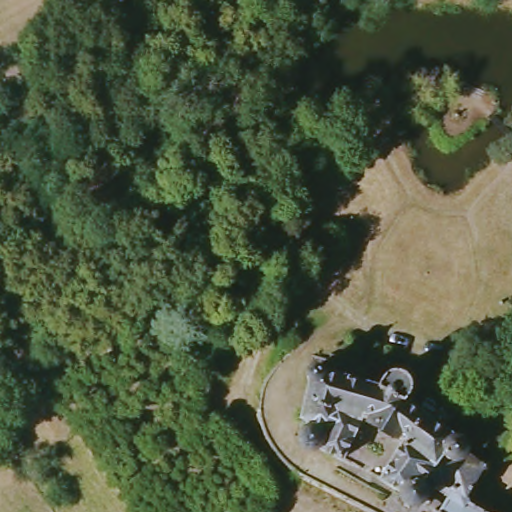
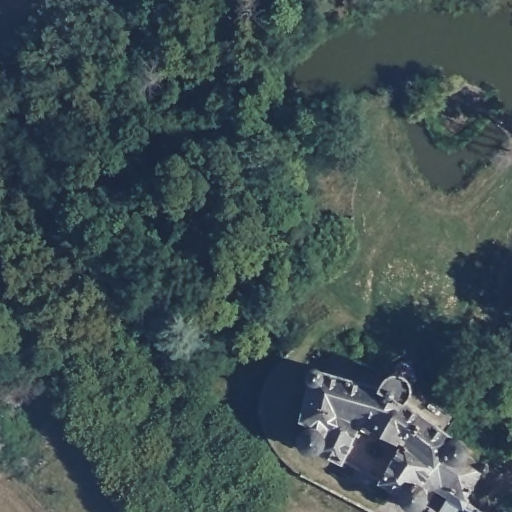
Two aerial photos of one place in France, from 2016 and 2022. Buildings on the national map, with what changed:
unchanged [(401,367),(409,370),(416,378),(415,386),(408,394),(459,432),(468,434),(472,438),(477,436),(481,437),(482,442),(480,446),(476,451),(487,459),(491,459),(492,463),(473,492),(475,498),(477,499),(496,511),(498,512),(448,512),(439,506),(426,499),(421,501),(417,500),(415,504),(410,501),(412,497),(408,493),(408,487),(386,475),(410,437),(401,432),(399,435),(385,427),(387,423),(370,413),(367,413),(347,455),(324,444),(310,442),(306,436),(307,428),(315,422),(313,416),(308,413),(316,373),(315,368),(315,366),(317,364),(320,363),(326,366),(386,382),(392,373),(401,367)]

